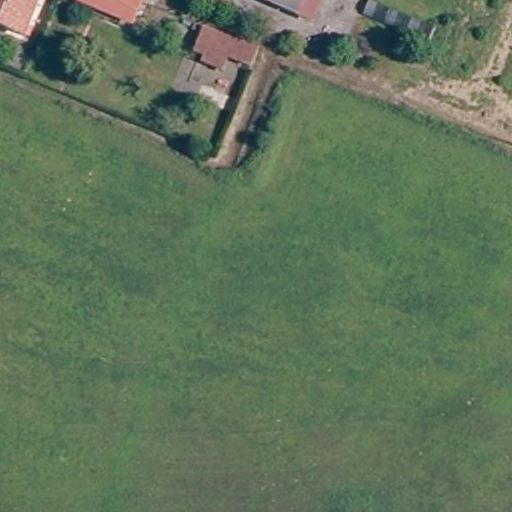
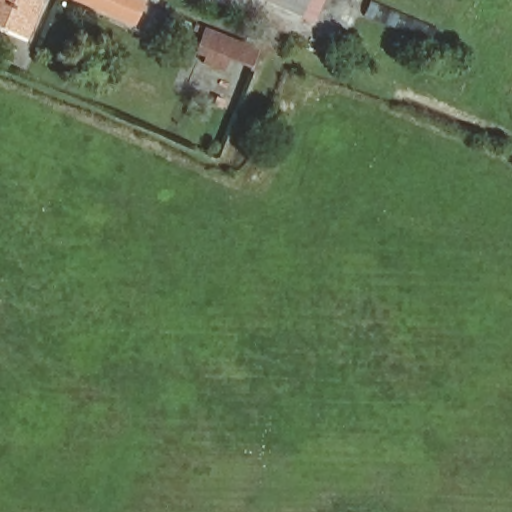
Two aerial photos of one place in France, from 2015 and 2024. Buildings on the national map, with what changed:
unchanged [(25,37),(0,27),(0,0),(34,0),(39,2),(25,37)]
unchanged [(120,20),(79,2),(74,0),(128,0),(120,20)]
unchanged [(310,27),(253,0),(322,0),(310,27)]
unchanged [(227,63),(219,72),(201,66),(203,60),(194,57),(202,30),(259,52),(250,71),(227,63)]

